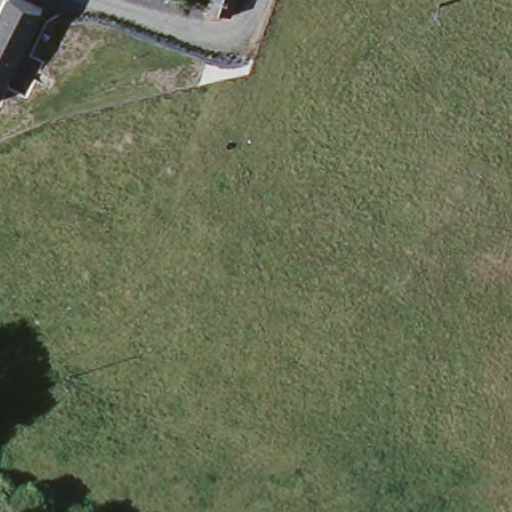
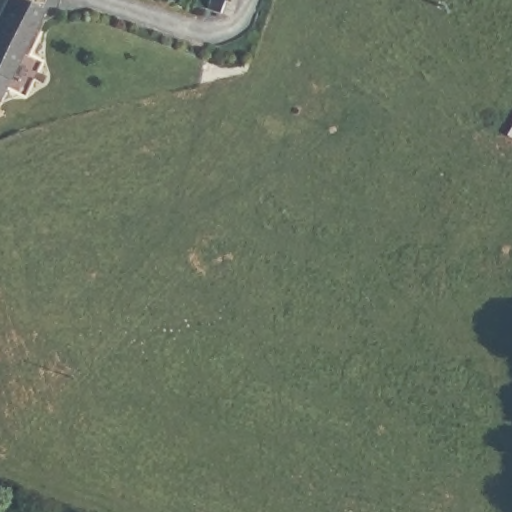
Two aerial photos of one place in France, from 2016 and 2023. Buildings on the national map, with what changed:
unchanged [(10,0),(38,0),(45,2),(0,89),(0,18),(10,0)]
unchanged [(207,0),(229,0),(222,19),(202,12),(207,0)]

